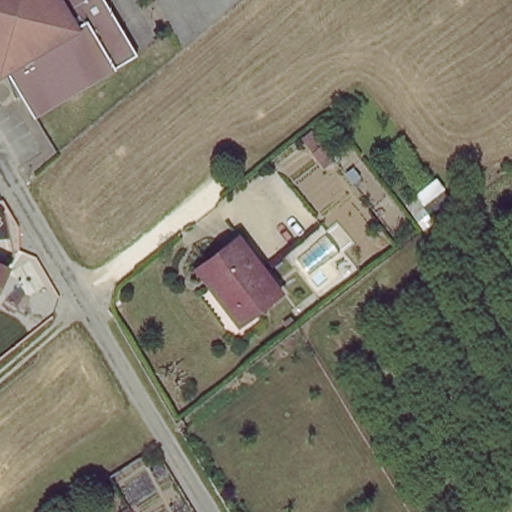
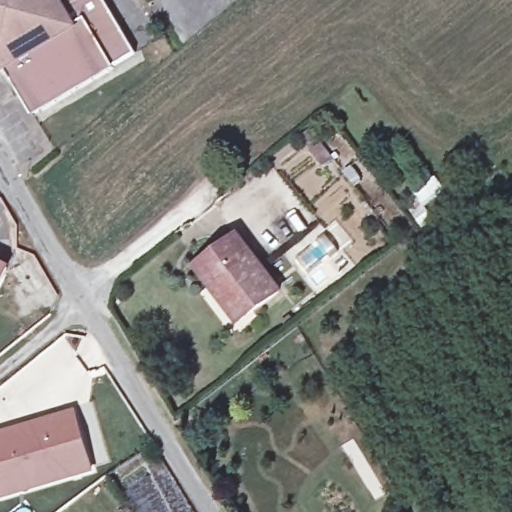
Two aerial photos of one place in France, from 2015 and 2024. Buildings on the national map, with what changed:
unchanged [(26,118),(0,70),(0,0),(99,0),(132,59),(26,118)]
unchanged [(233,326),(191,265),(236,236),(276,297),(233,326)]
unchanged [(0,297),(0,262),(13,269),(0,297)]
new [(94,473),(0,500),(0,434),(75,411),(94,473)]
demolished [(504,504),(510,512),(495,512),(504,504)]

